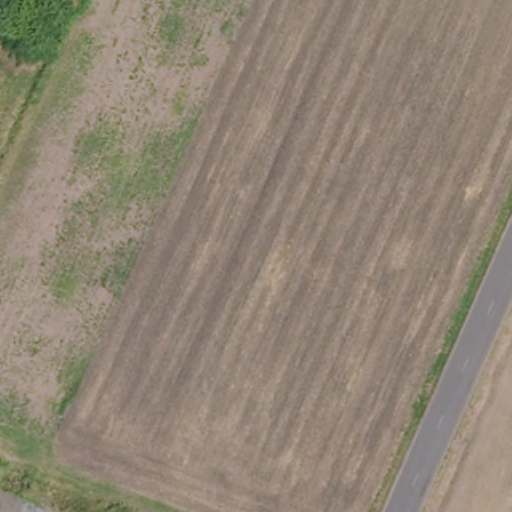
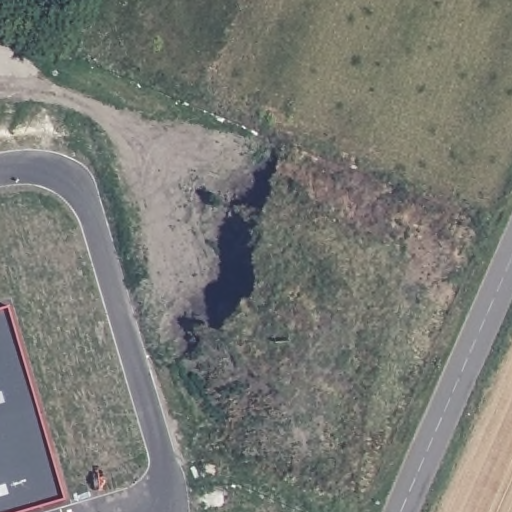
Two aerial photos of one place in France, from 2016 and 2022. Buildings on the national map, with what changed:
new [(23,512),(0,512),(0,310),(11,307),(62,501),(23,512)]

